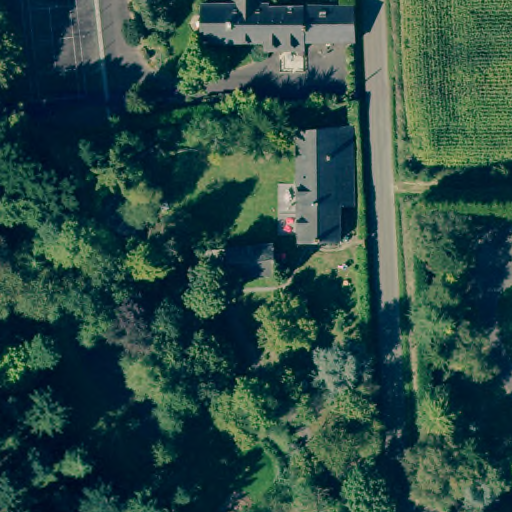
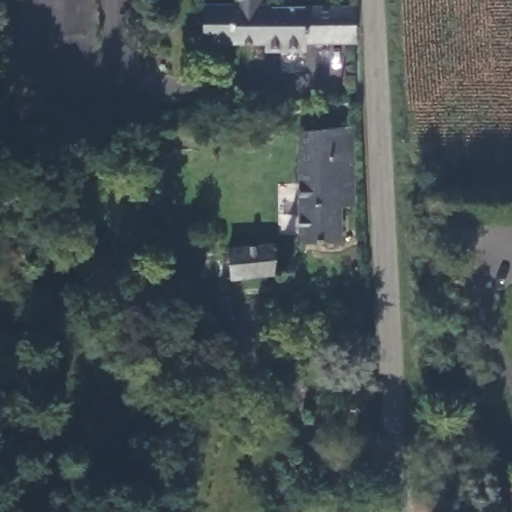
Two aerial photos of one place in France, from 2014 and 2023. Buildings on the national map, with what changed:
unchanged [(301,47),(261,46),(261,40),(198,40),(197,1),(207,1),(229,0),(258,0),(258,2),(277,2),(350,3),(351,37),(300,38),(301,47)]
unchanged [(166,10),(167,15),(165,20),(161,22),(153,20),(151,15),(152,10),(156,7),(161,7),(166,10)]
unchanged [(344,125),(342,201),(338,201),(331,240),(293,240),(292,126),(344,125)]
unchanged [(226,245),(291,244),(292,275),(226,276),(226,245)]
unchanged [(204,260),(217,260),(217,276),(205,276),(204,260)]

